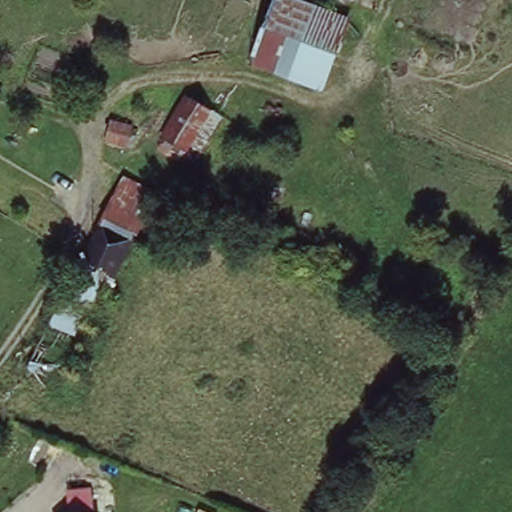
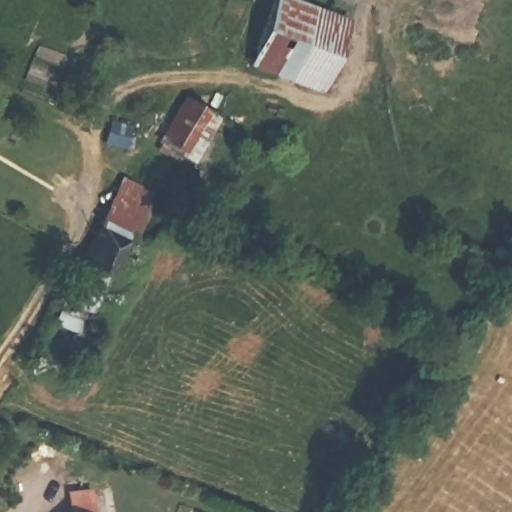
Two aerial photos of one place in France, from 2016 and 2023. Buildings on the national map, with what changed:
unchanged [(347,23),(321,88),(252,63),(277,0),(291,0),(347,23)]
unchanged [(345,1),(343,0),(346,0),(345,1)]
unchanged [(220,114),(194,158),(160,139),(186,95),(220,114)]
unchanged [(132,124),(126,145),(105,140),(109,119),(132,124)]
unchanged [(106,219),(130,176),(157,190),(134,234),(106,219)]
unchanged [(122,258),(113,274),(85,258),(106,219),(134,234),(122,258)]
unchanged [(56,381),(29,365),(77,275),(70,270),(77,254),(85,258),(113,274),(56,381)]
unchanged [(89,489),(91,512),(70,512),(68,489),(89,489)]

